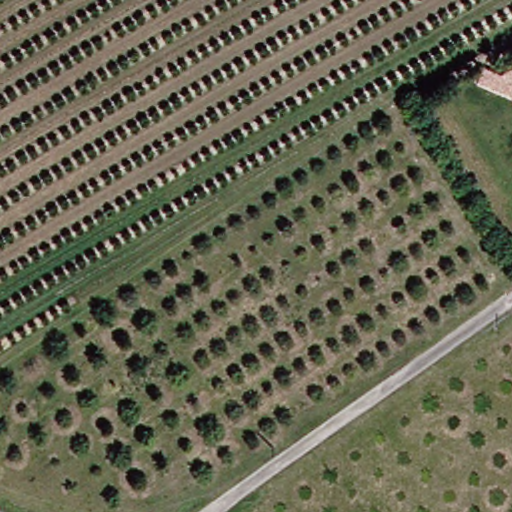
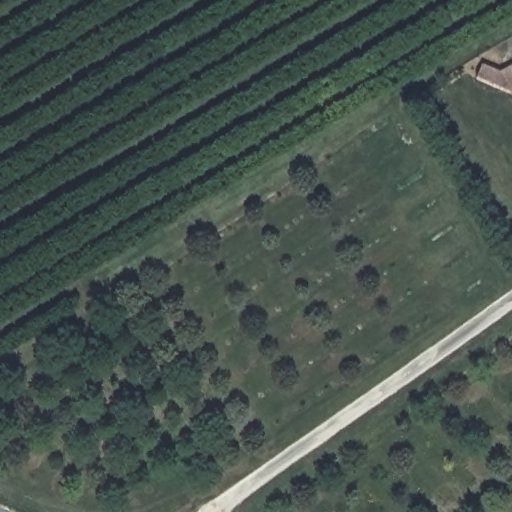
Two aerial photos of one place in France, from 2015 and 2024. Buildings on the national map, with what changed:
unchanged [(477,77),(480,66),(498,72),(509,68),(512,66),(512,98),(510,91),(477,77)]

